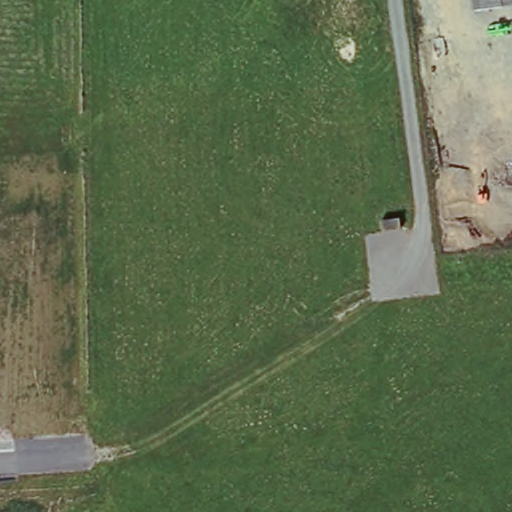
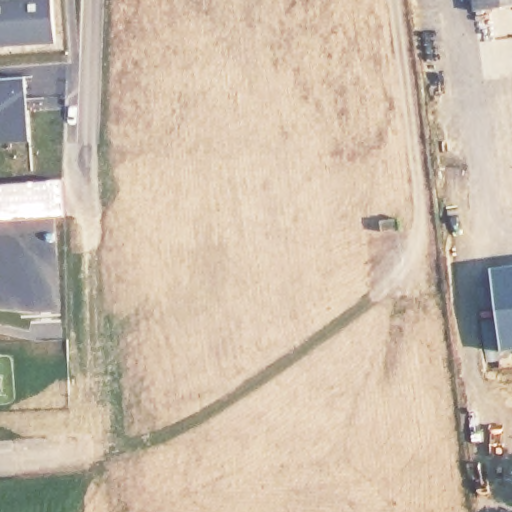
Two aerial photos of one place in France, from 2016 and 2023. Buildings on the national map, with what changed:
new [(0,37),(0,0),(53,0),(55,34),(0,37)]
unchanged [(475,14),(474,0),(512,0),(512,9),(475,14)]
new [(25,141),(0,141),(0,68),(22,67),(25,141)]
new [(512,269),(512,351),(500,352),(491,271),(512,269)]

